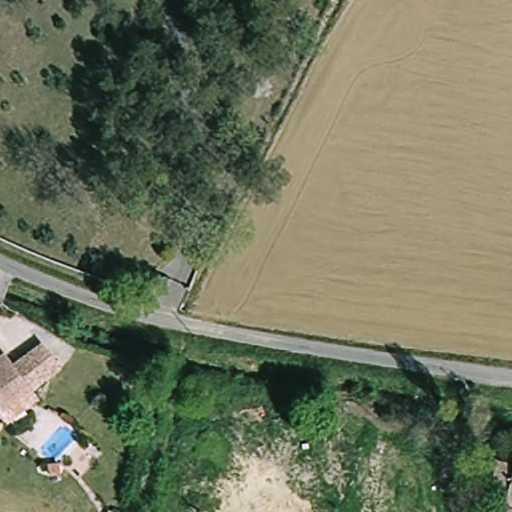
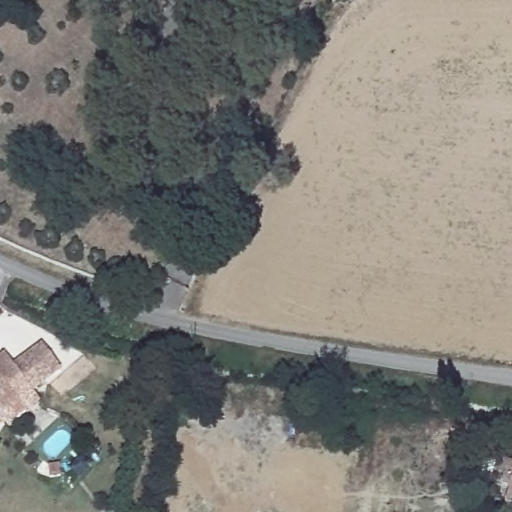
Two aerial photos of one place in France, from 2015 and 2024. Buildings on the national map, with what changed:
unchanged [(4,419),(0,424),(0,373),(15,361),(20,367),(34,356),(47,345),(66,370),(52,380),(38,392),(45,400),(12,425),(4,419)]
unchanged [(510,490),(493,486),(499,463),(512,466),(512,507),(506,506),(510,490)]

